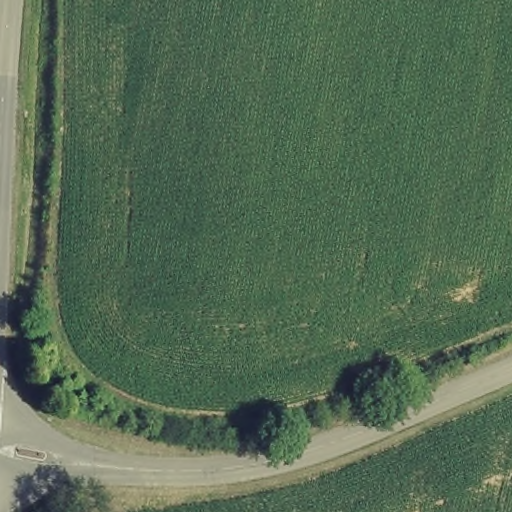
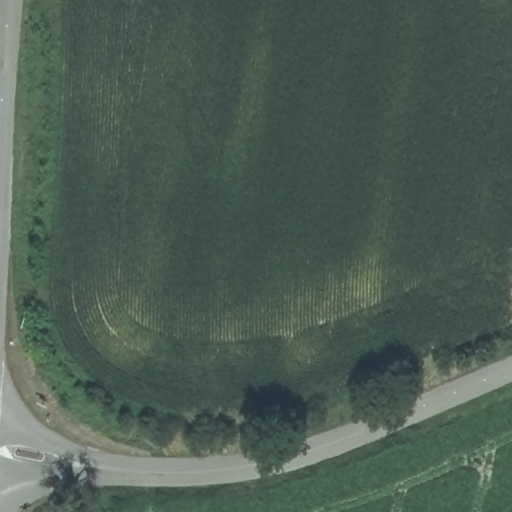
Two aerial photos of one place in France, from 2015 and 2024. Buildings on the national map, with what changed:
unchanged [(55,389),(36,400),(27,385),(42,375),(50,380),(55,389)]

